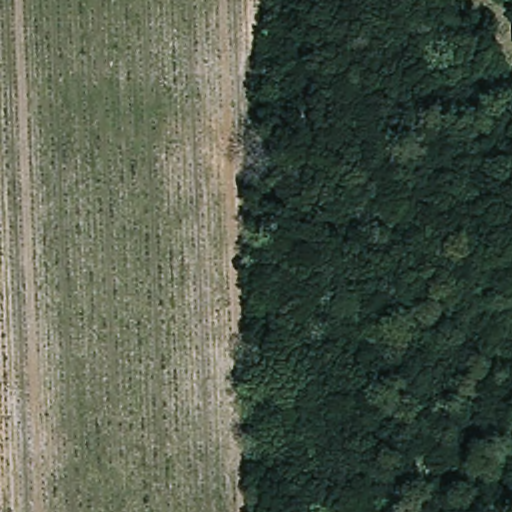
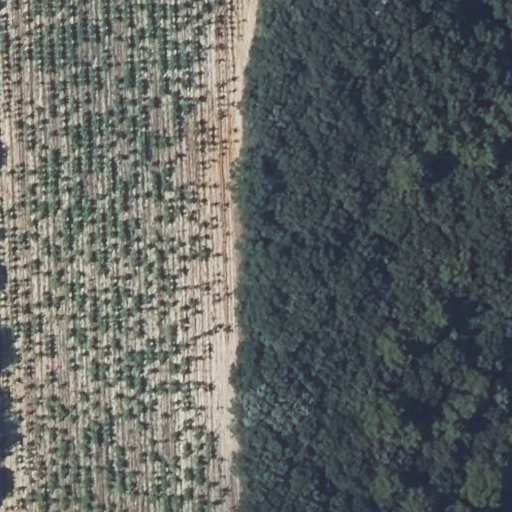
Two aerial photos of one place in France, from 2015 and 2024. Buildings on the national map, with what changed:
[]

